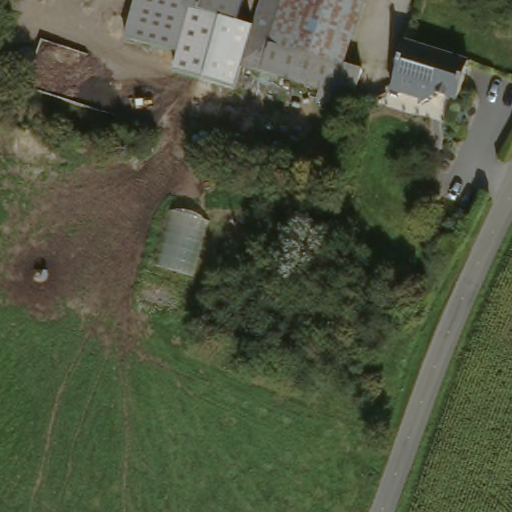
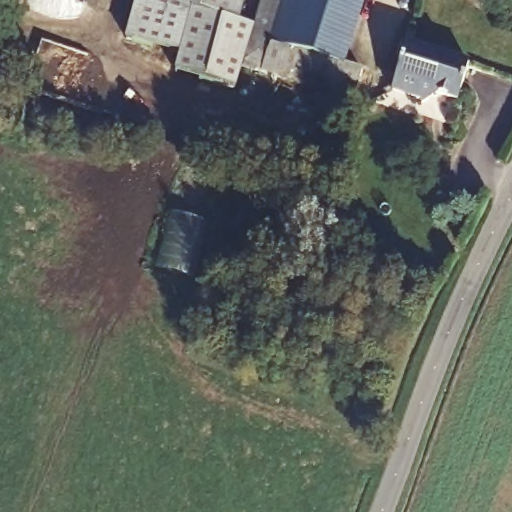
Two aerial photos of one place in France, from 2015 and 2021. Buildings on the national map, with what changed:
unchanged [(171,0),(156,54),(119,43),(132,0),(171,0)]
unchanged [(232,92),(174,75),(179,60),(156,54),(171,0),(203,0),(197,20),(199,20),(230,28),(232,21),(251,27),(238,70),(232,92)]
unchanged [(197,20),(203,0),(238,0),(230,28),(197,20)]
unchanged [(282,0),(266,49),(341,73),(359,79),(346,116),(327,110),(331,97),(238,70),(260,0),(282,0)]
unchanged [(282,0),(364,0),(341,73),(266,49),(282,0)]
unchanged [(403,45),(463,67),(450,105),(432,99),(416,110),(413,101),(387,91),(403,45)]

